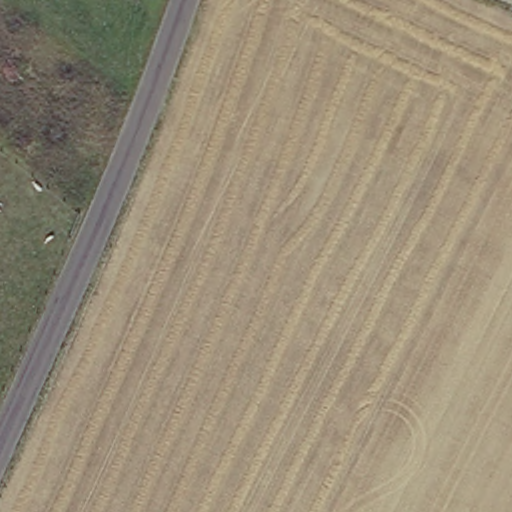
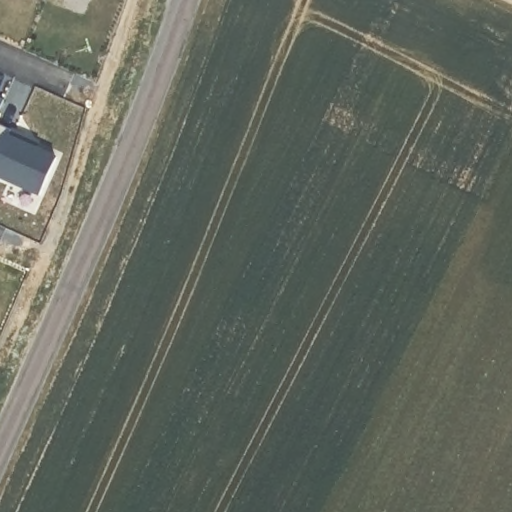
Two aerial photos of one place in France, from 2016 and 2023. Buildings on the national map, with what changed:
new [(0,110),(0,99),(4,100),(0,110)]
new [(10,136),(56,156),(41,197),(0,180),(0,126),(12,132),(10,136)]

